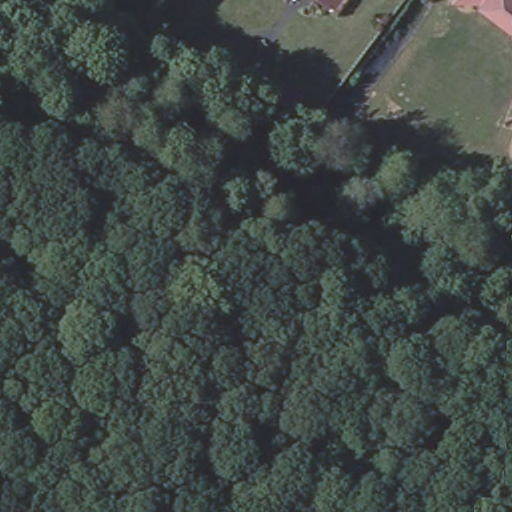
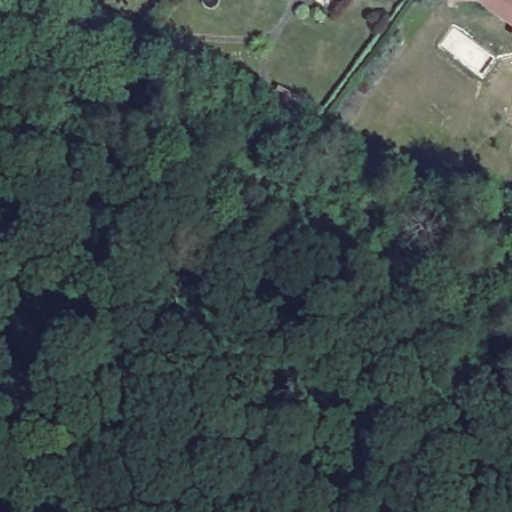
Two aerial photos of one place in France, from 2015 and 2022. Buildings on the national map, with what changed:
unchanged [(479,5),(477,4),(451,3),(451,0),(512,0),(512,31),(478,6),(479,5)]

